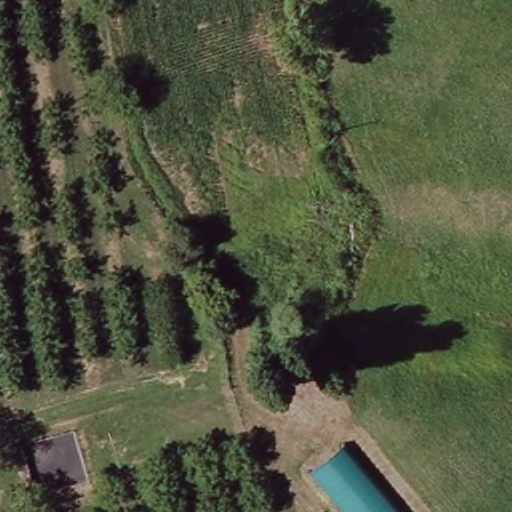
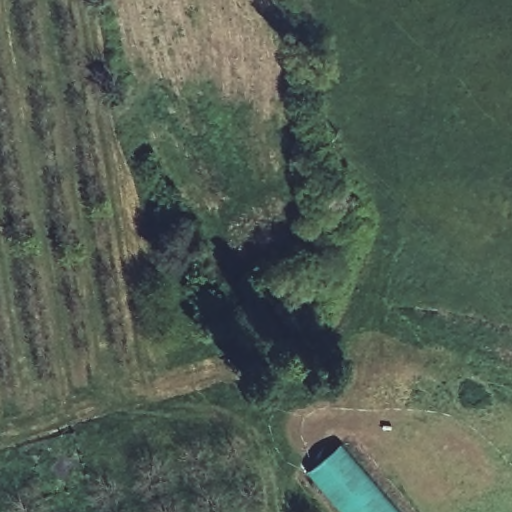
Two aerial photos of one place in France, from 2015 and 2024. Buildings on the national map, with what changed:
unchanged [(345,445),(401,512),(345,512),(311,472),(345,445)]

